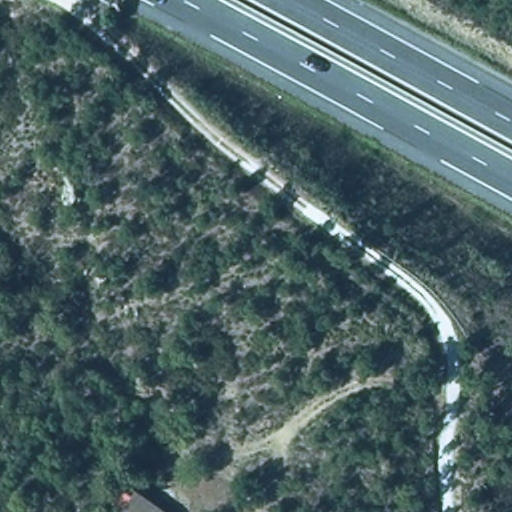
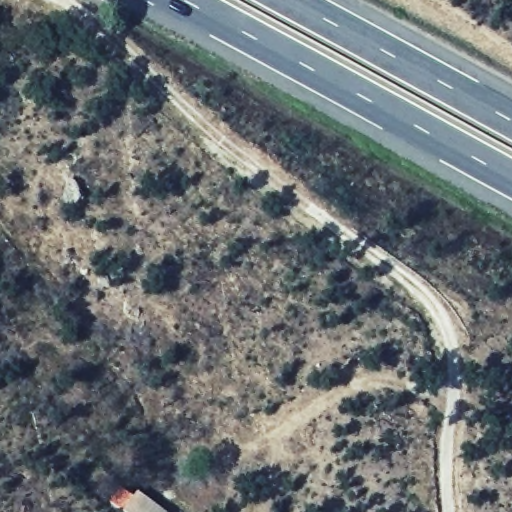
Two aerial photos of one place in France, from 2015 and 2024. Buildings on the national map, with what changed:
unchanged [(160,512),(122,512),(137,494),(160,512)]

